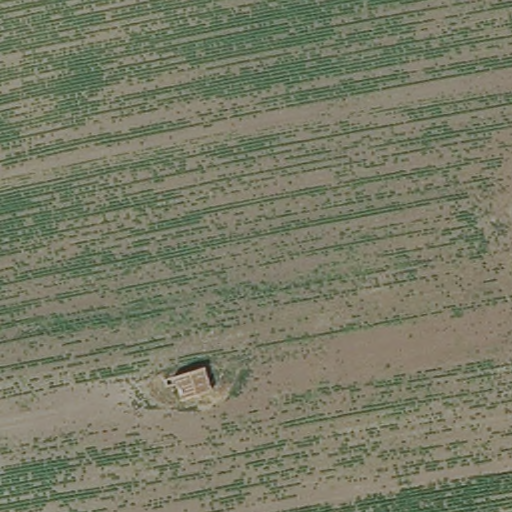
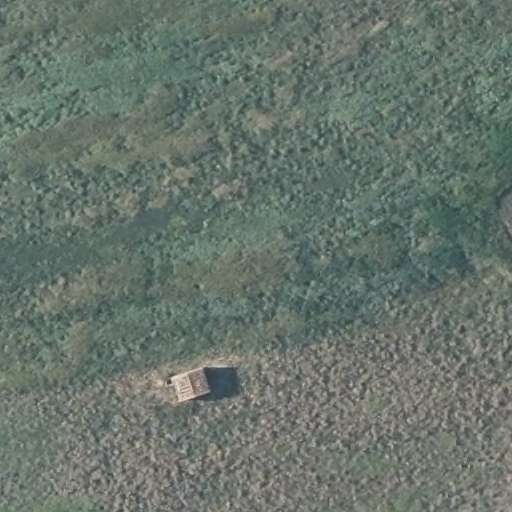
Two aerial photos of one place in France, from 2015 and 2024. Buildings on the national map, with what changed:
unchanged [(215,385),(200,391),(180,399),(171,378),(205,363),(215,385)]

